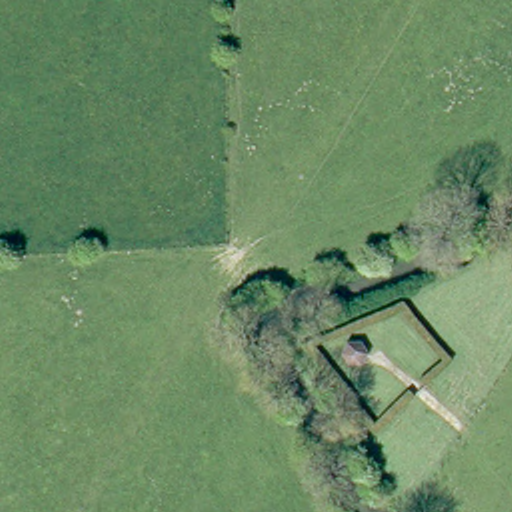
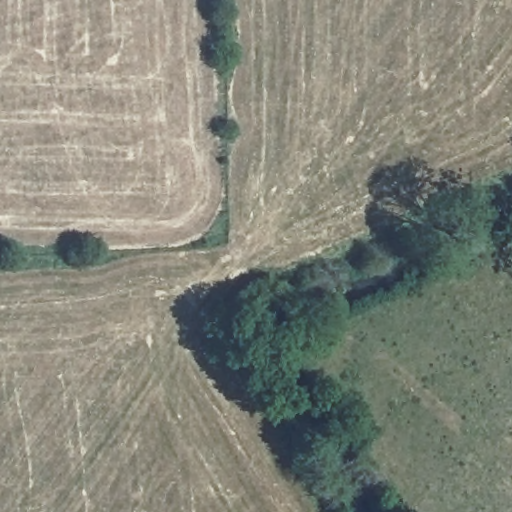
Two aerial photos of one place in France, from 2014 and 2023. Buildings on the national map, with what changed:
unchanged [(362,346),(367,356),(362,366),(351,366),(345,357),(350,346),(362,346)]

